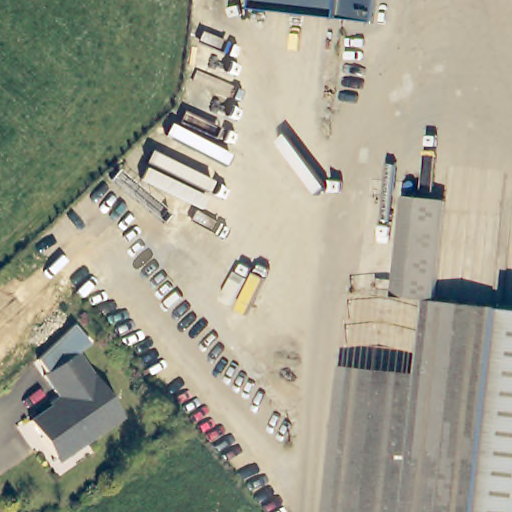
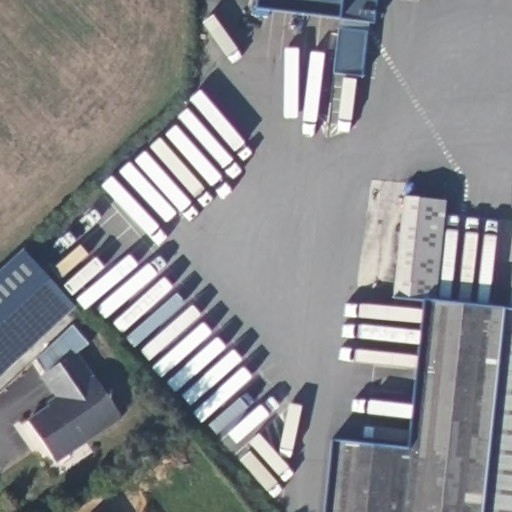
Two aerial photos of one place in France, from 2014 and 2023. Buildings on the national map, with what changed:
unchanged [(374,23),(337,17),(252,9),(254,0),(376,0),(374,23)]
unchanged [(406,197),(446,202),(435,301),(512,310),(512,512),(325,512),(352,292),(395,297),(406,197)]
new [(0,378),(0,272),(23,251),(75,308),(0,378)]
unchanged [(89,347),(79,354),(123,419),(87,443),(85,438),(53,459),(29,422),(59,401),(44,376),(47,373),(40,362),(77,327),(89,347)]

